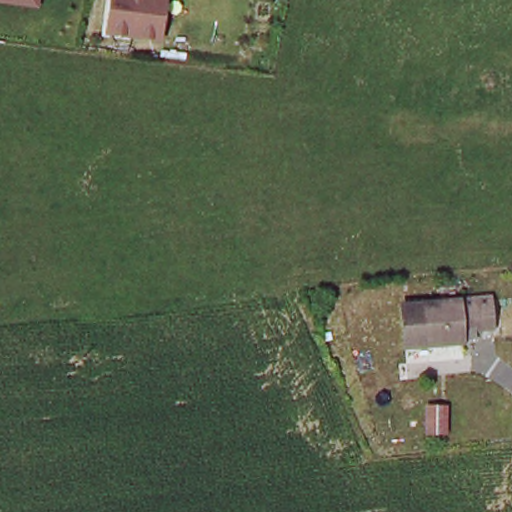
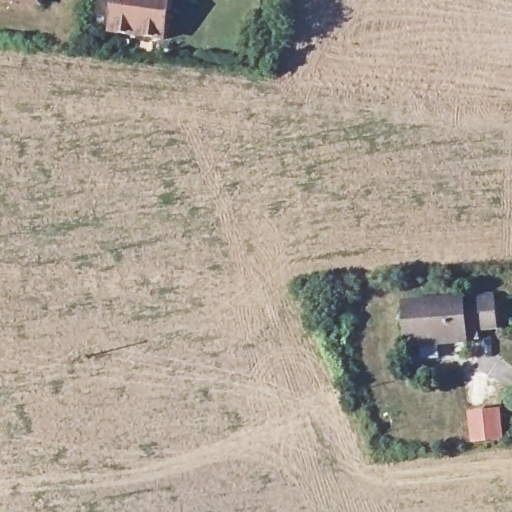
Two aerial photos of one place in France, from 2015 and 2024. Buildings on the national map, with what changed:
unchanged [(7,0),(44,0),(44,4),(7,0)]
unchanged [(111,34),(116,0),(174,0),(170,42),(111,34)]
unchanged [(479,327),(477,312),(457,314),(458,340),(403,348),(399,304),(490,295),(492,326),(479,327)]
new [(500,409),(503,439),(473,442),(470,412),(500,409)]

